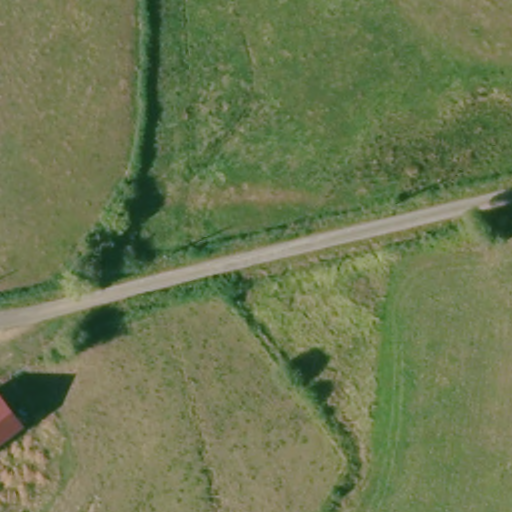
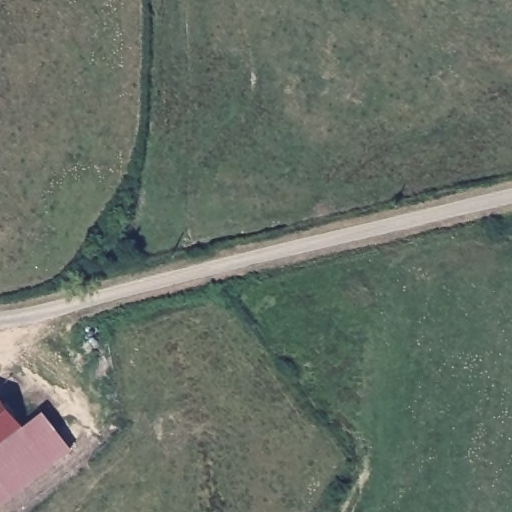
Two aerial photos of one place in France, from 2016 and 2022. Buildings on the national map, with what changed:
new [(23,426),(42,410),(71,446),(0,501),(0,396),(23,426)]
demolished [(20,426),(0,441),(0,402),(20,426)]

